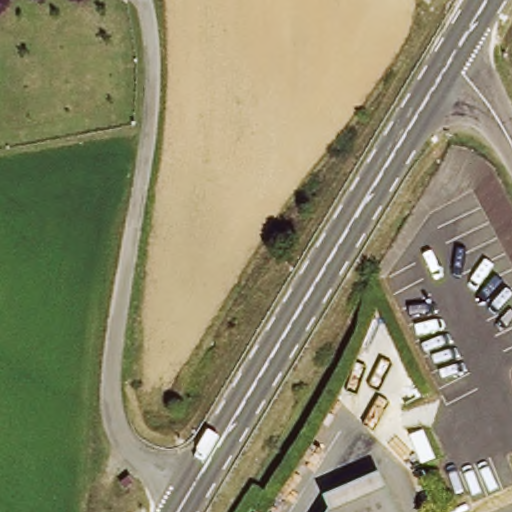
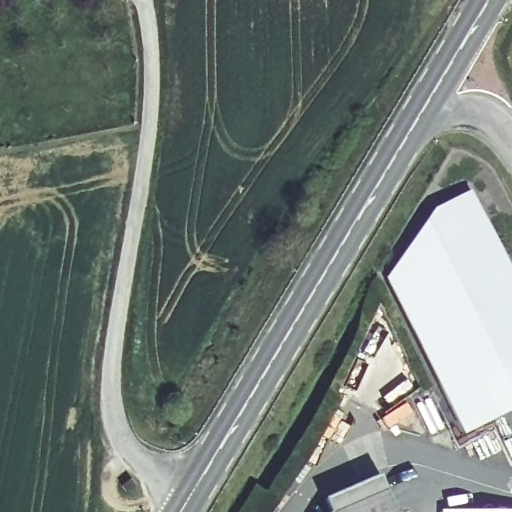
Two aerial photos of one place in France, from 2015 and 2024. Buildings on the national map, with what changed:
new [(512,266),(512,364),(481,380),(501,417),(462,438),(383,277),(433,205),(470,187),(512,266)]
new [(329,512),(324,500),(382,475),(398,512),(329,512)]
demolished [(405,486),(414,512),(343,512),(347,506),(405,486)]

